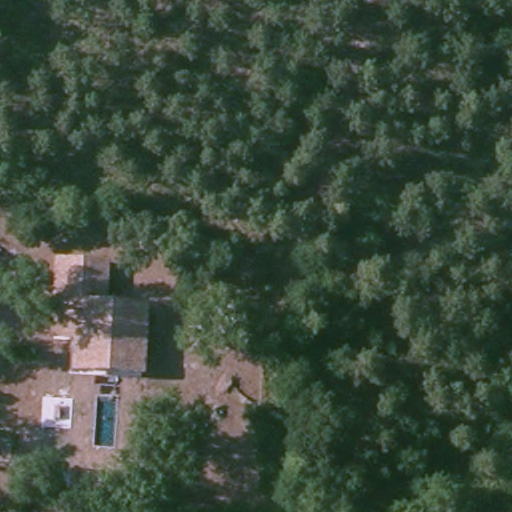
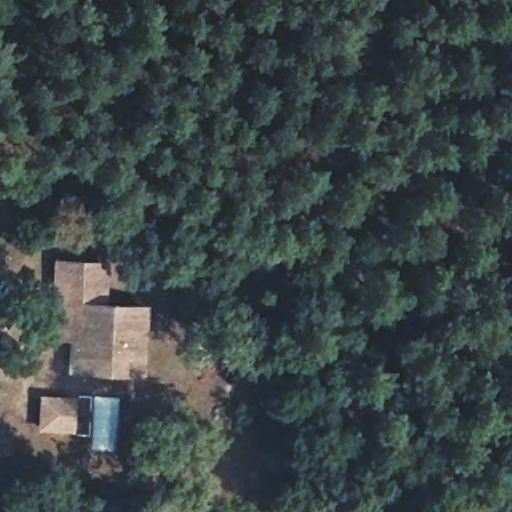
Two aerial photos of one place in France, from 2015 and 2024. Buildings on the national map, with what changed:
unchanged [(78,370),(78,338),(55,338),(56,306),(56,263),(79,263),(88,263),(106,264),(106,305),(126,305),(146,305),(145,371),(125,370),(99,370),(78,370)]
new [(41,396),(77,398),(76,432),(40,430),(41,396)]

